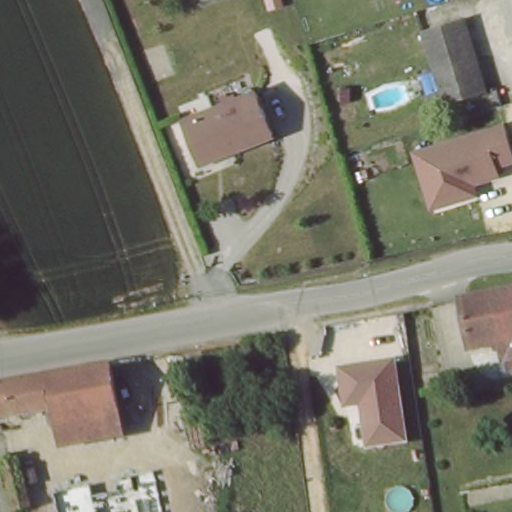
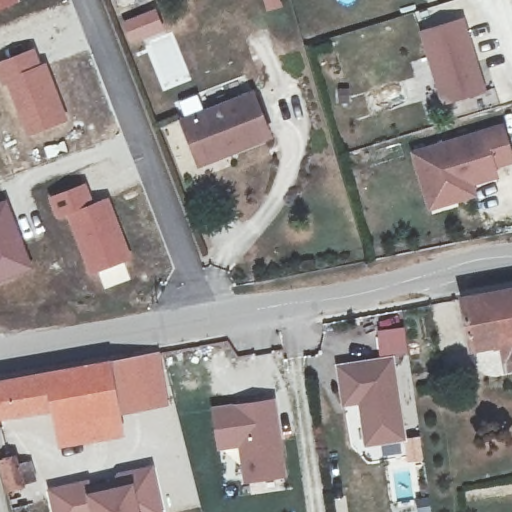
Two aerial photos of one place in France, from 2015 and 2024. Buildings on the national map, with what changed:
new [(0,10),(0,0),(20,0),(21,3),(0,10)]
new [(157,7),(166,33),(128,46),(120,22),(157,7)]
unchanged [(479,89),(439,102),(419,32),(457,20),(479,89)]
new [(42,63),(47,61),(69,121),(26,137),(4,84),(0,77),(0,60),(36,46),(42,63)]
unchanged [(193,153),(180,119),(251,91),(268,134),(220,153),(197,162),(193,153)]
unchanged [(512,153),(512,162),(494,168),(497,183),(470,189),(474,200),(427,213),(409,154),(504,126),(512,153)]
new [(134,260),(125,263),(132,280),(104,291),(97,274),(89,277),(66,215),(56,218),(48,197),(87,181),(94,202),(109,196),(134,260)]
new [(33,269),(0,281),(0,200),(8,198),(33,269)]
unchanged [(502,342),(474,346),(465,296),(512,288),(512,341),(502,342)]
unchanged [(507,365),(502,342),(512,341),(512,364),(507,365)]
unchanged [(110,362),(159,354),(165,394),(115,401),(110,362)]
unchanged [(364,448),(357,405),(342,407),(336,365),(395,357),(408,442),(364,448)]
unchanged [(0,410),(0,379),(110,362),(115,401),(116,405),(52,415),(50,404),(0,410)]
new [(243,483),(238,448),(217,450),(212,406),(275,399),(286,477),(243,483)]
unchanged [(116,405),(120,431),(57,438),(52,415),(116,405)]
unchanged [(2,464),(25,460),(35,505),(14,510),(2,464)]
unchanged [(55,512),(51,492),(89,484),(91,495),(120,490),(118,484),(126,473),(152,469),(162,512),(55,512)]

